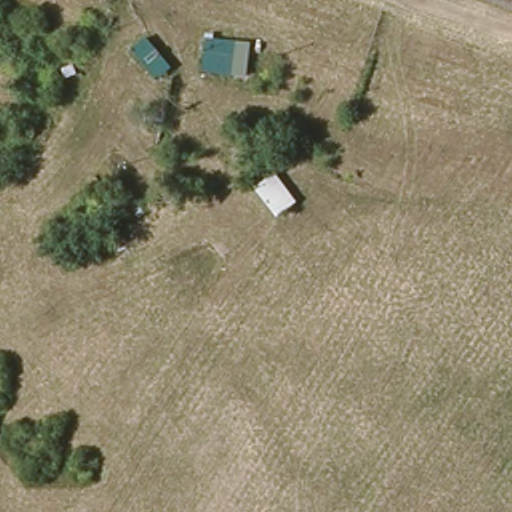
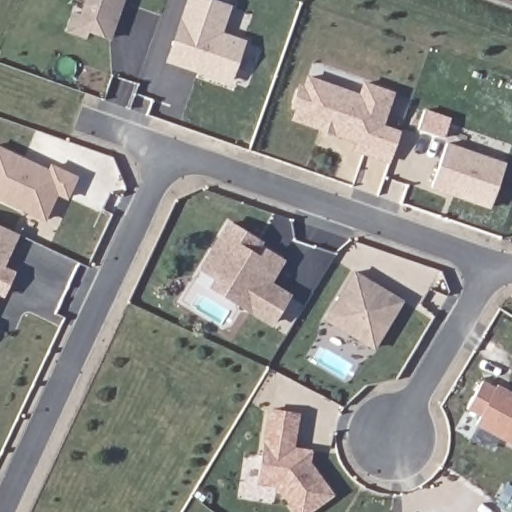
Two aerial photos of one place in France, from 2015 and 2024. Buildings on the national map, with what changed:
new [(83,19),(89,2),(82,0),(128,0),(114,42),(91,34),(88,41),(70,35),(76,17),(83,19)]
new [(165,62),(186,0),(218,0),(232,5),(223,32),(246,40),(231,85),(165,62)]
demolished [(155,79),(133,50),(149,37),(172,66),(155,79)]
demolished [(249,78),(202,73),(206,38),(251,43),(249,78)]
new [(298,99),(292,97),(297,83),(302,84),(307,74),(362,79),(393,90),(381,123),(400,130),(388,163),(352,150),(355,142),(291,120),(298,99)]
new [(430,188),(446,141),(505,162),(488,209),(430,188)]
new [(15,234),(25,210),(0,198),(0,149),(49,171),(52,166),(75,177),(67,196),(71,198),(48,248),(22,237),(6,271),(15,275),(5,297),(0,295),(0,228),(1,228),(15,234)]
demolished [(286,171),(301,199),(275,214),(263,181),(286,171)]
new [(217,289),(222,280),(228,267),(221,280),(206,272),(213,259),(232,225),(263,242),(257,254),(265,259),(269,251),(286,260),(273,283),(295,292),(278,323),(257,311),(242,303),(217,289)]
new [(413,290),(395,342),(343,323),(362,272),(413,290)]
new [(478,430),(483,422),(470,414),(486,386),(499,393),(501,390),(512,396),(512,449),(478,430)]
new [(308,458),(331,494),(306,512),(295,512),(275,487),(257,484),(269,407),(299,412),(293,446),(310,449),(308,458)]

